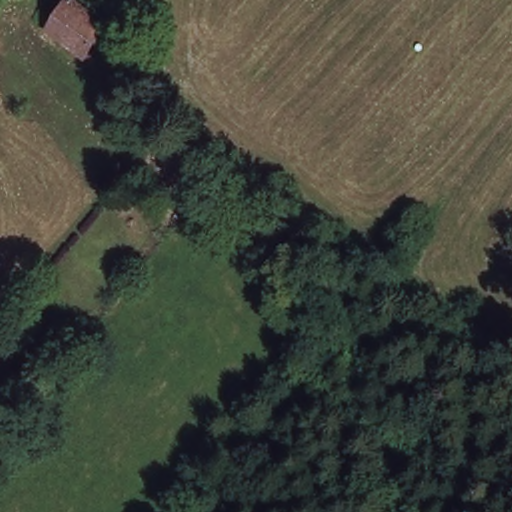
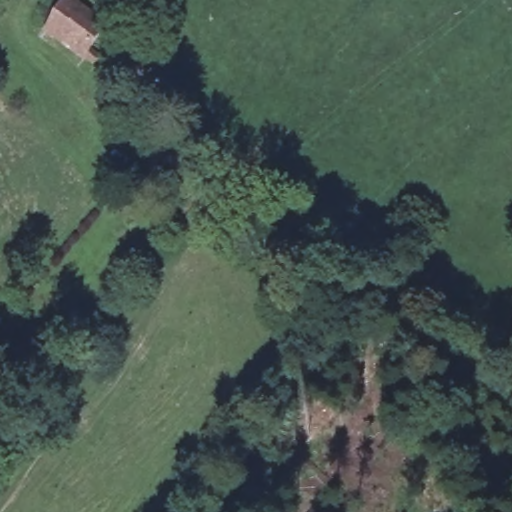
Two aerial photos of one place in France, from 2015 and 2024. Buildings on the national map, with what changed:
unchanged [(67,0),(72,0),(88,11),(105,25),(106,25),(86,57),(45,31),(67,0)]

